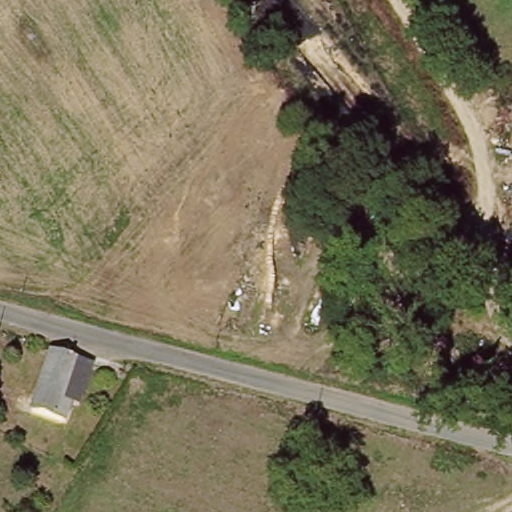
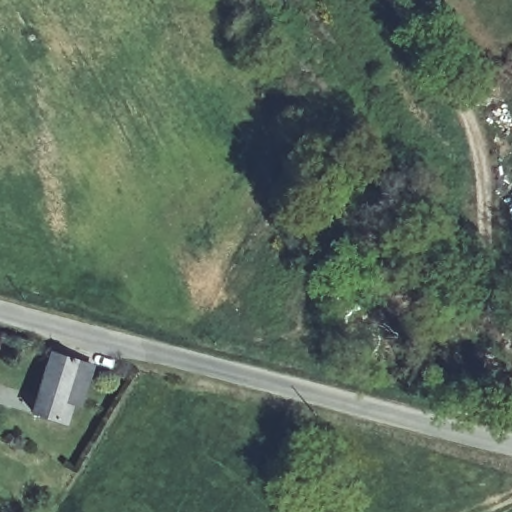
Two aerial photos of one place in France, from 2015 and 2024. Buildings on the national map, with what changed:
unchanged [(77,362),(93,367),(82,404),(72,401),(65,422),(31,412),(33,407),(51,355),(77,362)]

